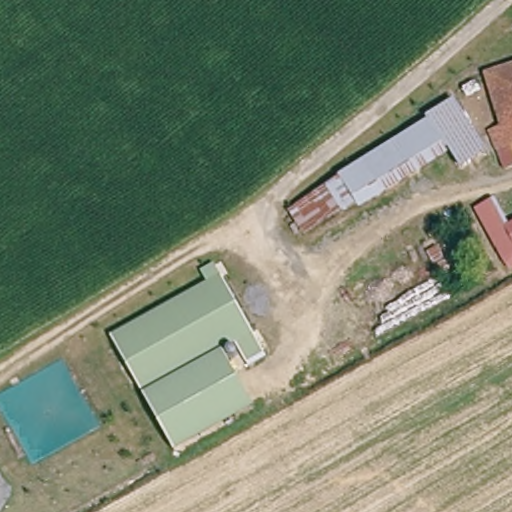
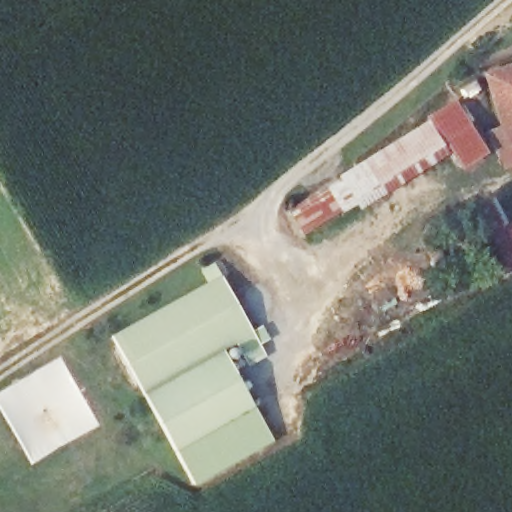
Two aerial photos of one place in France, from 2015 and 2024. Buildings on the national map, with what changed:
unchanged [(501,155),(493,136),(510,129),(488,76),(512,67),(512,168),(507,170),(501,155)]
unchanged [(466,105),(492,154),(470,166),(456,141),(309,223),(296,199),(466,105)]
unchanged [(500,196),(512,218),(512,268),(477,209),(500,196)]
unchanged [(244,356),(233,338),(220,346),(143,393),(111,339),(207,281),(199,268),(211,261),(219,274),(261,346),(244,356)]
unchanged [(254,402),(177,449),(143,393),(220,346),(254,402)]
new [(275,440),(196,485),(177,449),(254,402),(275,440)]

